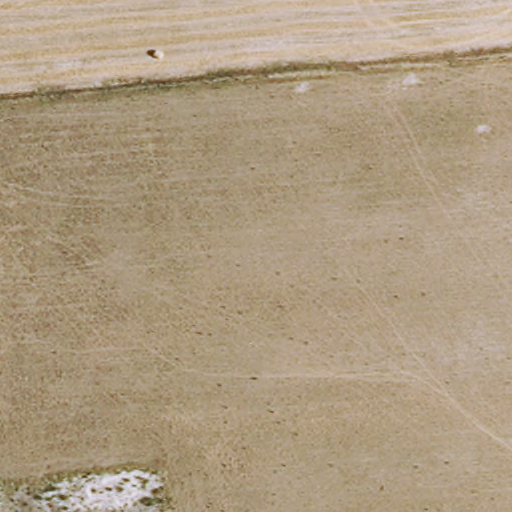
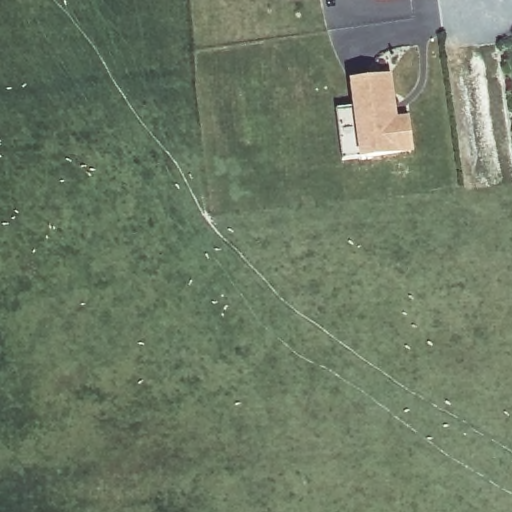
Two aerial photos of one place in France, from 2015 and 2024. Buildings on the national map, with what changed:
new [(352,82),(390,78),(395,122),(407,120),(412,152),(360,158),(342,160),(337,109),(355,107),(352,82)]

